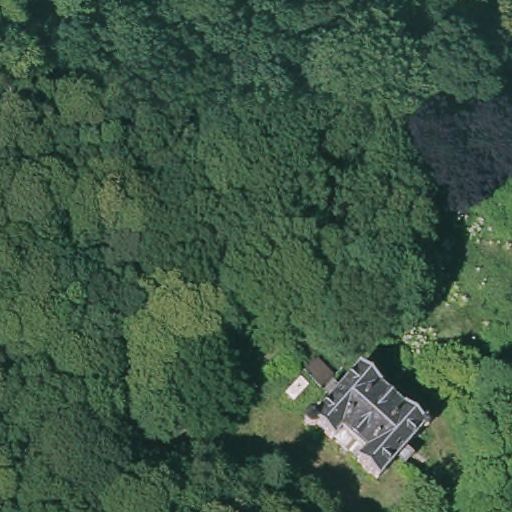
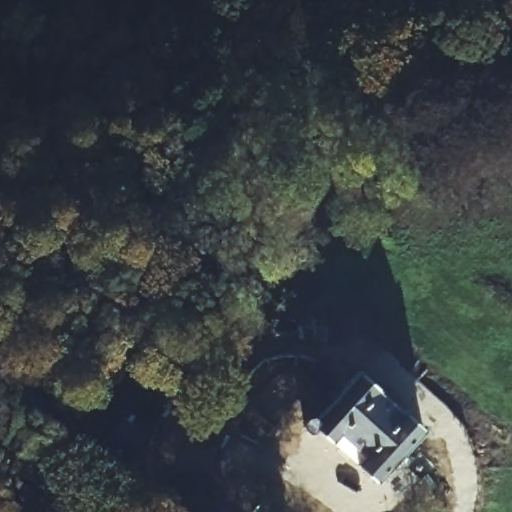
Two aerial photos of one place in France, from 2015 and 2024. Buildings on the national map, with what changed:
unchanged [(316,362),(335,378),(320,394),(301,379),(316,362)]
unchanged [(360,470),(363,467),(336,443),(332,446),(320,434),(318,435),(315,438),(312,439),(309,438),(305,437),(303,435),(302,433),(301,430),(301,428),(302,425),(303,422),(305,420),(309,419),(312,418),(315,418),(320,420),(333,406),(325,398),(340,383),(346,388),(360,375),(380,393),(377,397),(403,420),(406,417),(426,434),(380,488),(360,470)]
unchanged [(118,420),(116,417),(115,416),(115,413),(116,411),(118,409),(120,408),(122,408),(125,408),(127,409),(128,411),(130,413),(130,414),(130,416),(129,417),(126,421),(137,431),(146,439),(145,441),(141,445),(127,461),(123,466),(97,444),(118,420)]

